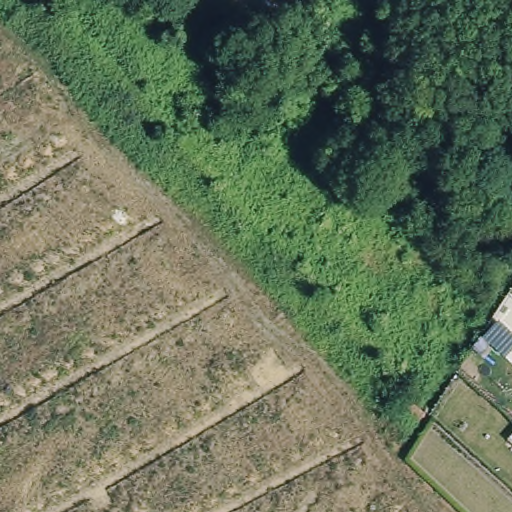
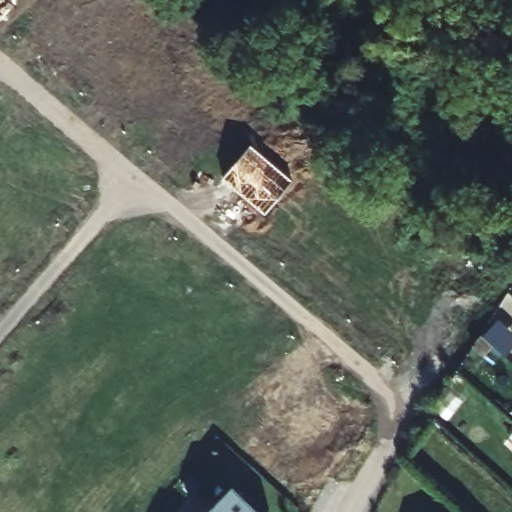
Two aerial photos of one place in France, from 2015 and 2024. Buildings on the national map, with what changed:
new [(292,181),(266,215),(224,179),(251,145),(292,181)]
new [(260,512),(208,512),(233,486),(260,512)]

